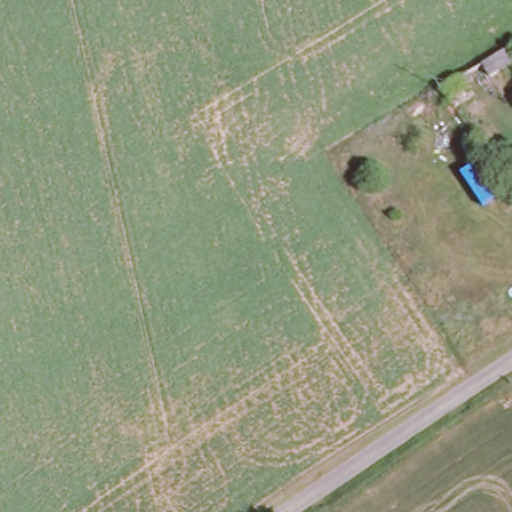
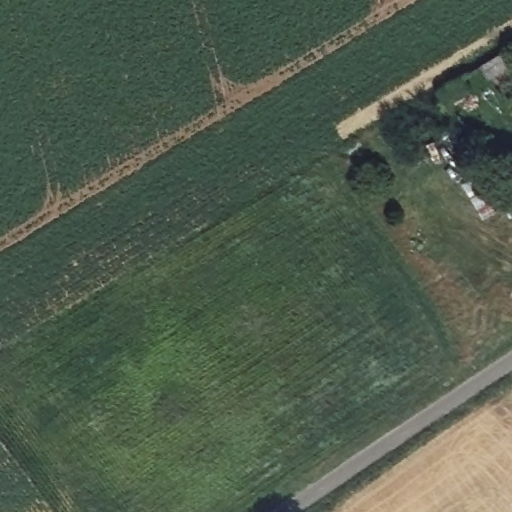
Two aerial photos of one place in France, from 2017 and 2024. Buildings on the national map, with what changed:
unchanged [(504,52),(509,60),(486,75),(481,65),(504,52)]

